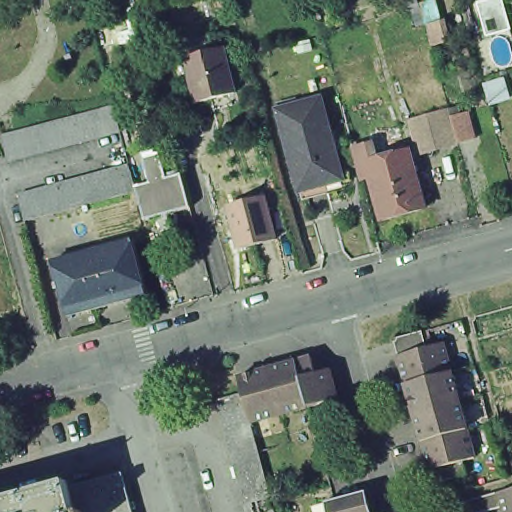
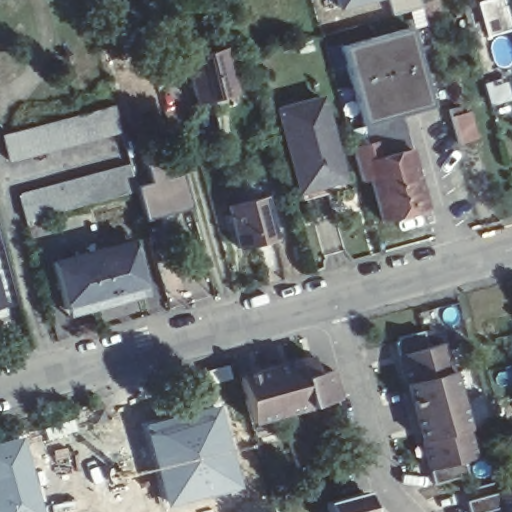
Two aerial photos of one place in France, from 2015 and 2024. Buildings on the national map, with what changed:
unchanged [(426,17),(424,7),(421,0),(437,0),(440,12),(449,42),(434,46),(426,17)]
unchanged [(487,39),(479,6),(502,0),(512,33),(487,39)]
new [(414,27),(435,108),(365,126),(344,45),(414,27)]
unchanged [(236,100),(198,110),(186,66),(182,51),(211,43),(215,57),(224,55),(236,100)]
unchanged [(485,82),(508,78),(512,94),(512,100),(490,107),(485,82)]
unchanged [(317,99),(338,176),(324,181),(324,184),(297,191),(275,111),(317,99)]
unchanged [(5,137),(37,128),(104,109),(111,134),(43,152),(12,160),(5,137)]
demolished [(412,119),(429,114),(445,110),(454,144),(437,149),(422,153),(412,119)]
unchanged [(460,142),(452,115),(470,111),(477,138),(460,142)]
unchanged [(382,220),(371,178),(362,181),(354,149),(352,144),(361,142),(362,146),(374,143),(382,175),(392,171),(392,168),(396,167),(393,156),(409,152),(417,180),(423,179),(426,191),(421,193),(425,208),(382,220)]
unchanged [(152,182),(144,154),(160,149),(168,178),(184,173),(194,207),(147,221),(139,192),(138,186),(152,182)]
unchanged [(20,195),(52,186),(132,165),(134,174),(138,186),(139,192),(60,213),(29,222),(20,195)]
unchanged [(230,207),(265,198),(277,238),(242,248),(230,207)]
unchanged [(67,317),(51,321),(49,313),(37,267),(52,263),(115,247),(127,291),(129,300),(67,317)]
new [(2,307),(0,308),(0,300),(2,307)]
unchanged [(392,357),(387,340),(416,332),(421,349),(437,345),(445,373),(403,385),(400,385),(392,357)]
unchanged [(312,362),(315,374),(327,371),(335,400),(309,408),(297,366),(312,362)]
unchanged [(280,416),(269,374),(297,366),(309,408),(280,416)]
unchanged [(403,385),(445,373),(452,402),(412,415),(403,385)]
unchanged [(280,416),(250,425),(242,396),(237,383),(269,374),(280,416)]
new [(215,402),(229,447),(240,488),(166,508),(150,462),(140,422),(215,402)]
unchanged [(420,443),(412,415),(452,402),(460,432),(420,443)]
demolished [(20,416),(34,412),(35,420),(20,423),(20,416)]
unchanged [(428,485),(424,471),(415,444),(420,443),(460,432),(469,457),(457,460),(462,476),(428,485)]
new [(41,512),(0,512),(0,439),(19,434),(41,512)]
demolished [(127,512),(70,512),(64,487),(116,473),(127,512)]
demolished [(64,487),(70,512),(0,512),(0,500),(62,483),(64,487)]
unchanged [(495,496),(512,491),(512,512),(499,512),(499,509),(488,512),(466,512),(464,505),(495,496)]
unchanged [(333,502),(337,500),(362,494),(366,512),(327,512),(325,504),(333,502)]

